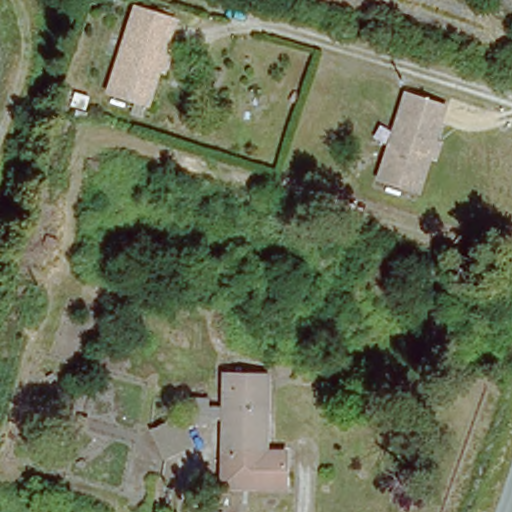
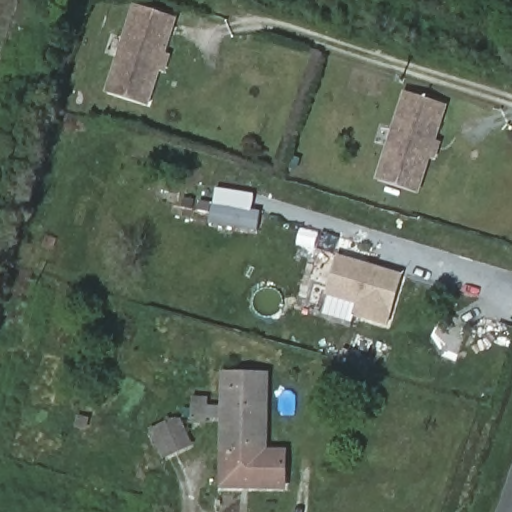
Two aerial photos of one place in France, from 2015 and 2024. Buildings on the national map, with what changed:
unchanged [(141,11),(179,24),(151,102),(113,89),(141,11)]
unchanged [(447,110),(420,191),(380,177),(410,96),(447,110)]
new [(260,212),(257,232),(210,225),(214,204),(260,212)]
new [(384,326),(352,317),(356,304),(325,295),(336,257),(400,277),(384,326)]
unchanged [(267,368),(266,457),(290,457),(290,483),(220,483),(222,367),(267,368)]
unchanged [(154,431),(182,417),(194,443),(165,456),(154,431)]

